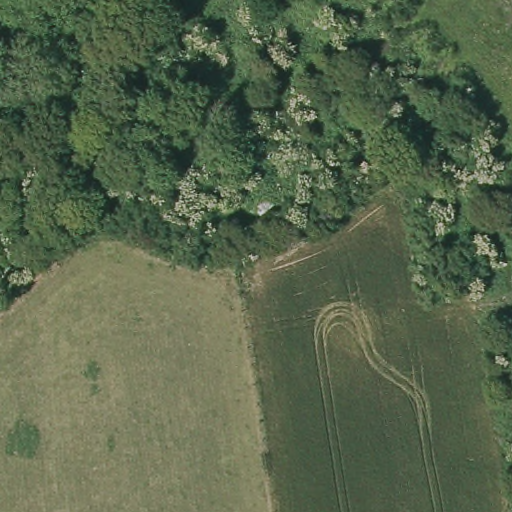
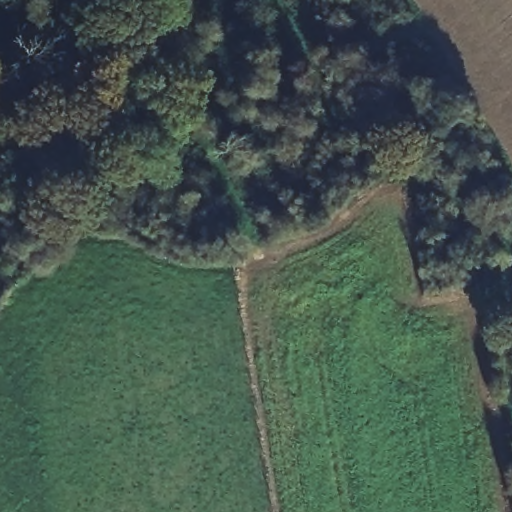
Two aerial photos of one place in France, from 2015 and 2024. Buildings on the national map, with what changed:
unchanged [(348,178),(328,187),(323,172),(343,163),(348,178)]

